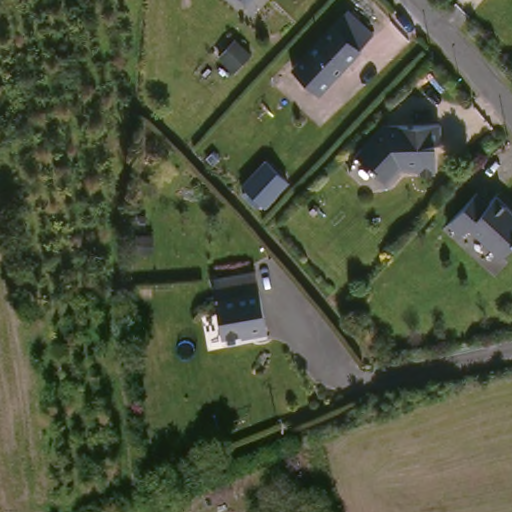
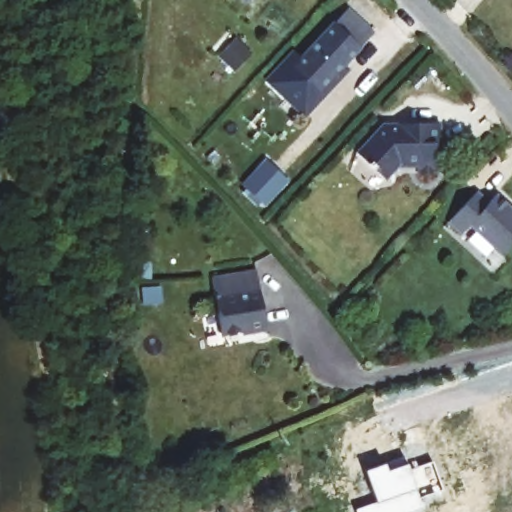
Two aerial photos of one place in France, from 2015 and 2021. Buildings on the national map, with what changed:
unchanged [(310,96),(284,72),(338,14),(364,37),(310,96)]
unchanged [(242,47),(226,66),(212,54),(229,36),(242,47)]
unchanged [(435,142),(430,142),(430,172),(413,173),(412,163),(395,164),(380,180),(351,152),(377,124),(435,123),(435,142)]
unchanged [(291,184),(273,202),(242,182),(265,158),(291,184)]
unchanged [(512,221),(512,240),(494,259),(462,229),(453,238),(441,226),(470,197),(482,207),(489,200),(512,221)]
unchanged [(251,331),(251,332),(222,336),(216,279),(260,274),(266,329),(251,331)]
new [(362,472),(405,457),(410,470),(434,461),(445,490),(421,499),(424,510),(417,512),(355,512),(355,511),(373,503),(362,472)]

